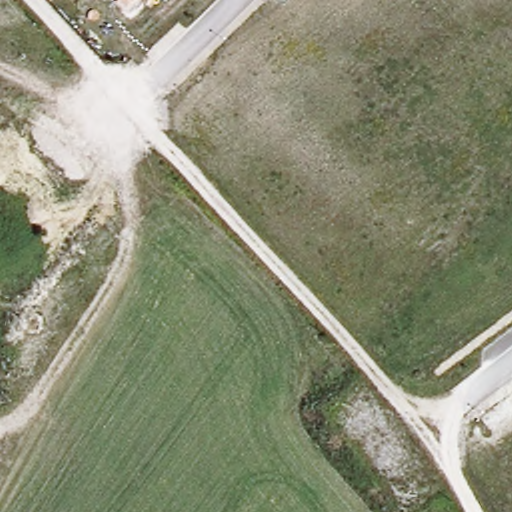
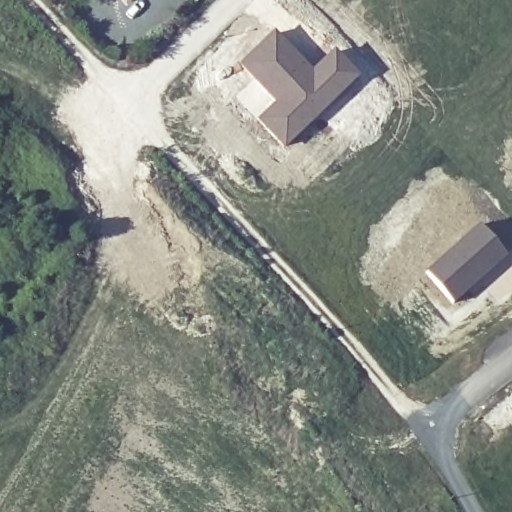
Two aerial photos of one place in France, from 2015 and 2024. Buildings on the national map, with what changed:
unchanged [(126,9),(118,0),(136,0),(126,9)]
new [(237,64),(272,32),(310,70),(332,50),(359,77),(284,147),(255,117),(235,96),(251,80),(237,64)]
new [(478,224),(508,256),(454,303),(425,270),(478,224)]

